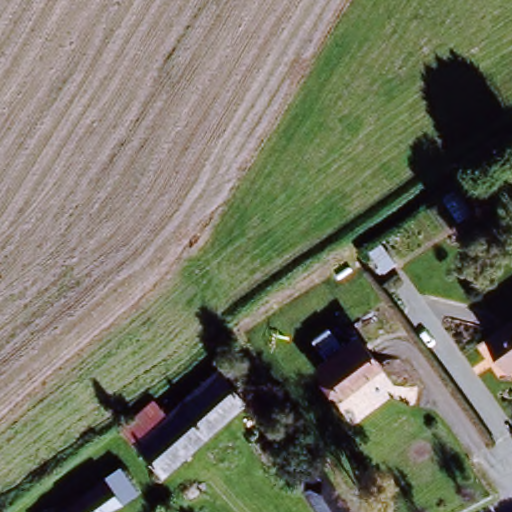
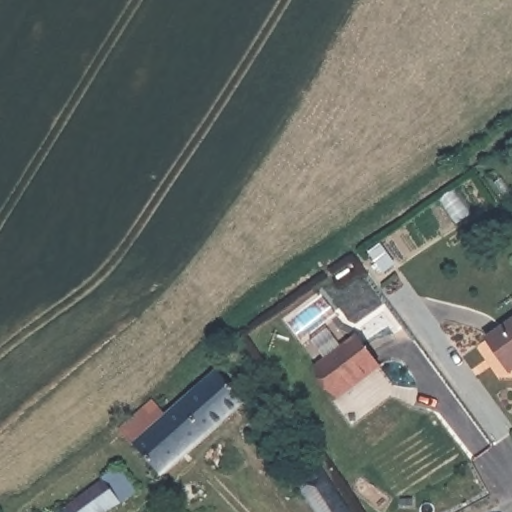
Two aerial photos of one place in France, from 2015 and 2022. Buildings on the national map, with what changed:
unchanged [(512,374),(506,377),(484,340),(512,323),(512,374)]
unchanged [(336,405),(309,371),(320,363),(306,346),(323,333),(338,352),(353,340),(378,371),(336,405)]
unchanged [(163,481),(115,432),(150,401),(161,415),(213,372),(249,406),(163,481)]
unchanged [(63,512),(115,471),(133,497),(116,512),(63,512)]

